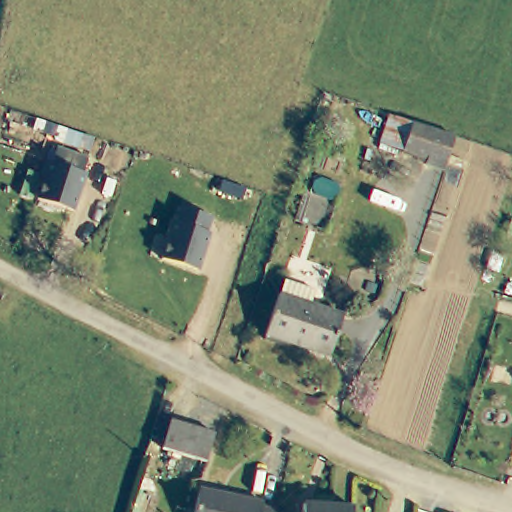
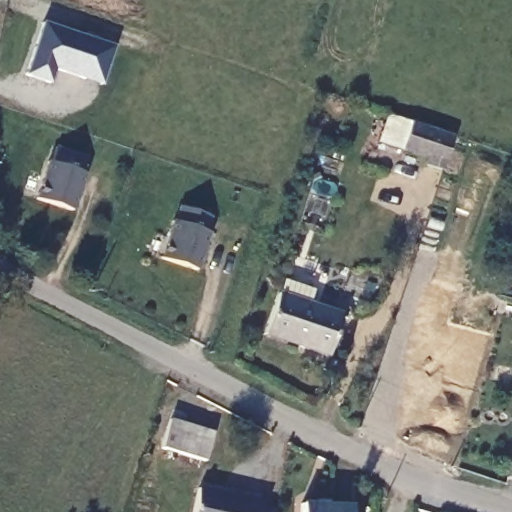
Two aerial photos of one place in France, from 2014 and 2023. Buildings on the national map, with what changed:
new [(100,86),(53,71),(48,84),(24,76),(42,22),(113,46),(100,86)]
unchanged [(430,160),(406,152),(388,146),(398,114),(441,127),(430,160)]
unchanged [(80,171),(67,209),(30,197),(42,160),(45,161),(51,146),(82,156),(78,171),(80,171)]
unchanged [(208,217),(203,232),(206,234),(194,271),(158,260),(169,222),(172,222),(177,207),(208,217)]
unchanged [(323,352),(260,332),(272,293),(278,277),(308,286),(303,302),(336,312),(323,352)]
unchanged [(168,422),(211,434),(202,464),(160,451),(168,422)]
unchanged [(193,489),(255,505),(254,510),(262,512),(186,512),(193,489)]
unchanged [(298,503),(348,508),(348,512),(297,512),(298,503)]

